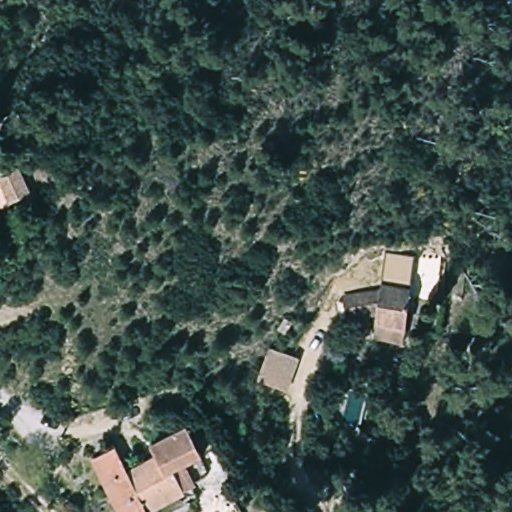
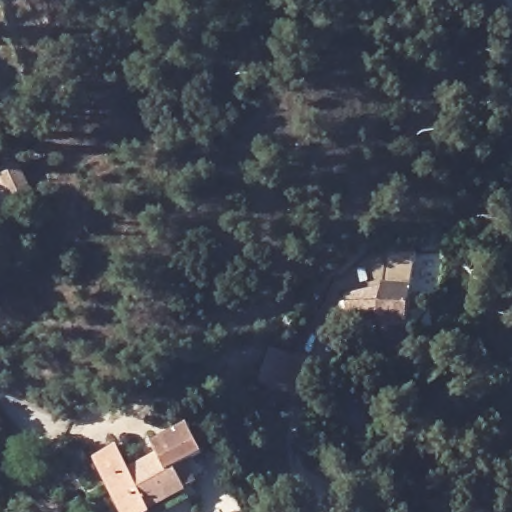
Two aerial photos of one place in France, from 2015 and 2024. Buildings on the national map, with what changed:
unchanged [(1,163),(4,162),(6,161),(10,160),(14,161),(17,162),(18,164),(29,189),(6,199),(0,184),(0,165),(1,163)]
unchanged [(388,242),(417,247),(411,285),(382,281),(388,242)]
unchanged [(382,281),(411,285),(407,329),(375,325),(377,313),(340,319),(337,292),(382,281)]
unchanged [(364,393),(358,426),(340,422),(347,390),(364,393)]
unchanged [(141,471),(186,448),(195,465),(187,469),(200,493),(165,512),(135,512),(104,457),(128,445),(141,471)]

